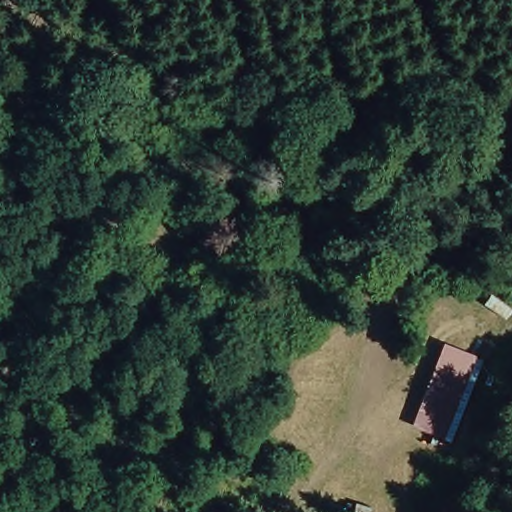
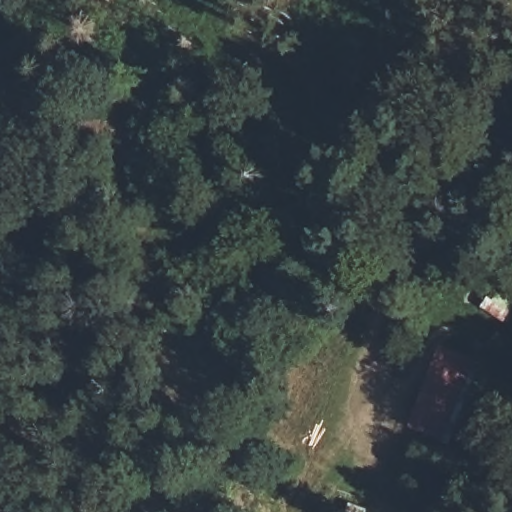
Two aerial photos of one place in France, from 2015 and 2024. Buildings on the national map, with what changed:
unchanged [(476,361),(443,444),(412,429),(447,347),(476,361)]

